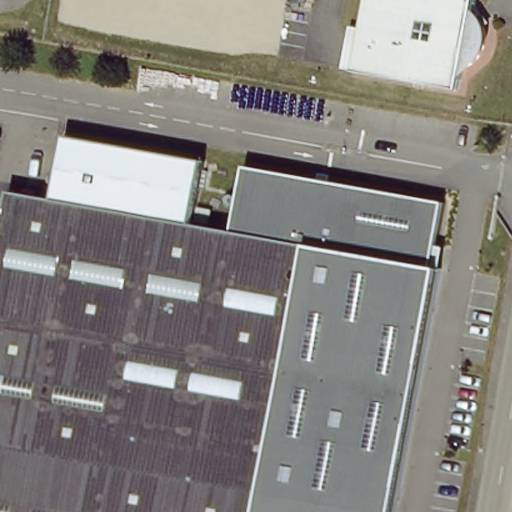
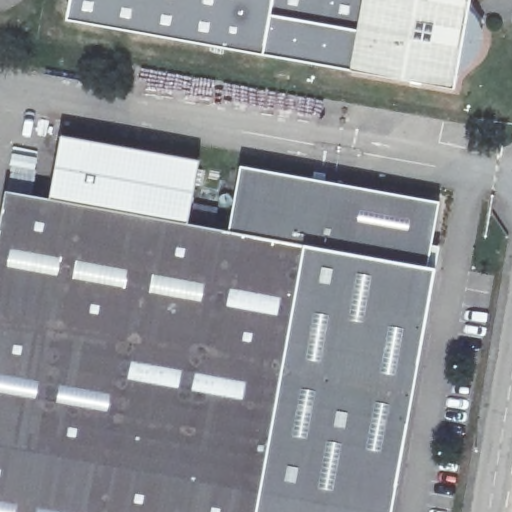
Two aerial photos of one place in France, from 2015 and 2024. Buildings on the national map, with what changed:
new [(69,20),(73,0),(366,0),(354,74),(69,20)]
unchanged [(473,0),(471,13),(472,15),(474,16),(475,17),(477,19),(478,21),(479,22),(480,24),(481,26),(482,28),(482,30),(483,31),(483,34),(483,36),(483,38),(483,40),(483,41),(483,44),(483,46),(482,48),(482,50),(481,51),(480,54),(479,55),(478,57),(477,59),(475,60),(474,61),(472,63),(471,65),(470,66),(467,66),(466,68),(464,69),(462,69),(458,91),(354,74),(366,0),(473,0)]
unchanged [(237,243),(247,181),(447,217),(443,284),(435,282),(395,512),(0,512),(0,227),(5,201),(48,209),(60,151),(205,176),(194,235),(237,243)]

